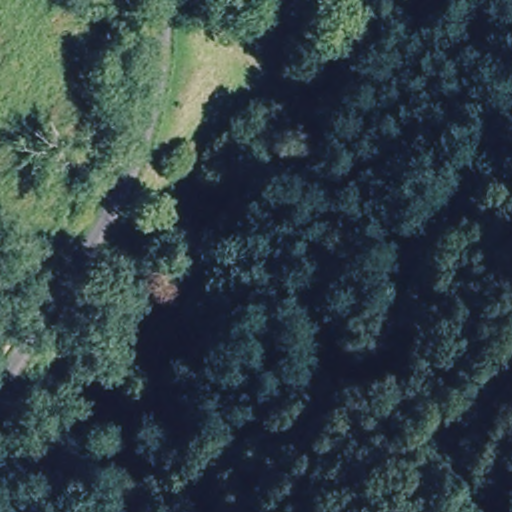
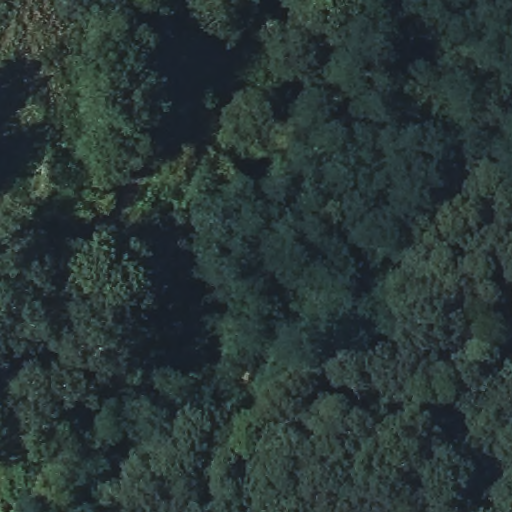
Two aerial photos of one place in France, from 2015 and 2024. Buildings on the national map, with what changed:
[]

